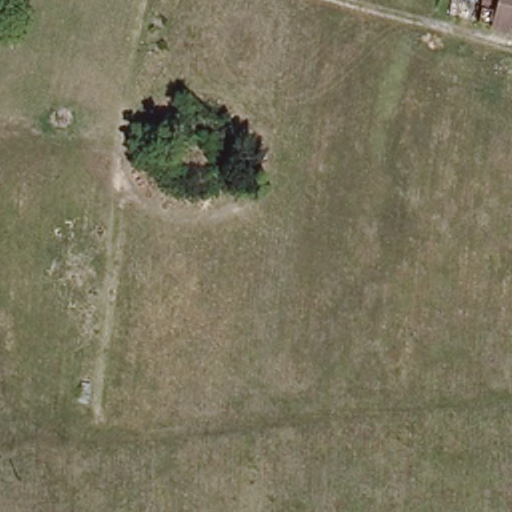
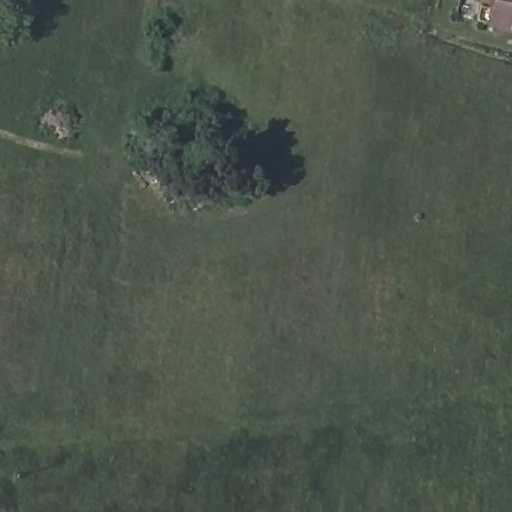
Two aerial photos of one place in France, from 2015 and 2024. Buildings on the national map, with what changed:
unchanged [(494,26),(477,22),(482,0),(512,0),(512,26),(496,22),(494,26)]

